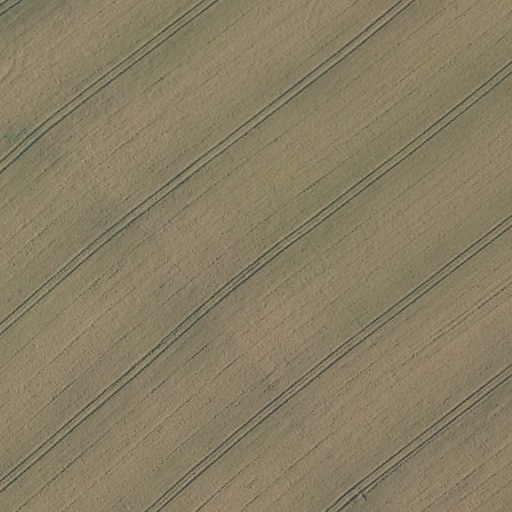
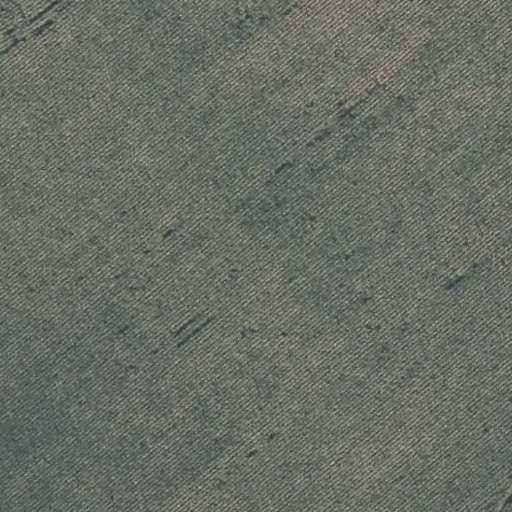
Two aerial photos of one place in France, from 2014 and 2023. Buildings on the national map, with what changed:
[]

